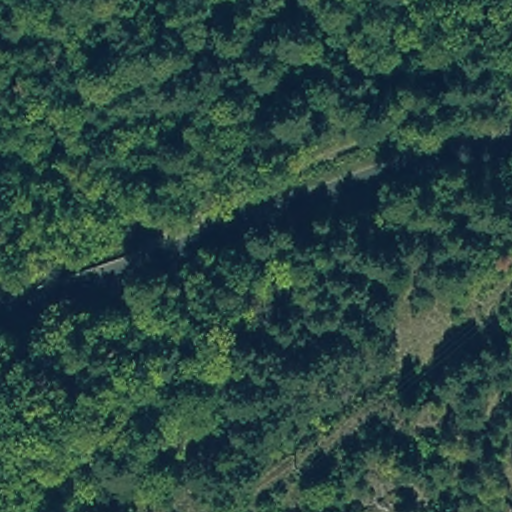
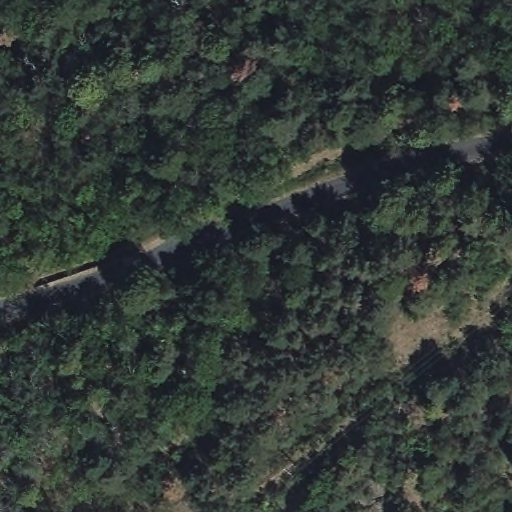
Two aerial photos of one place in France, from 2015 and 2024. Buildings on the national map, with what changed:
[]

